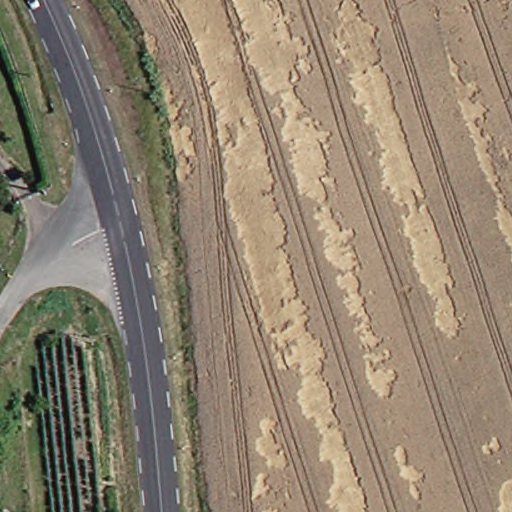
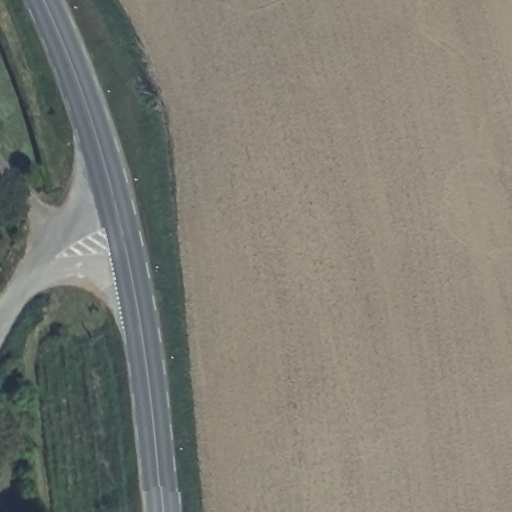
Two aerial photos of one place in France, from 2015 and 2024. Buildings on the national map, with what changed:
[]

